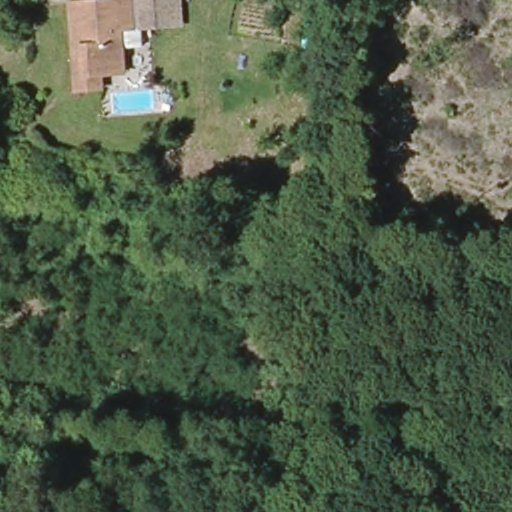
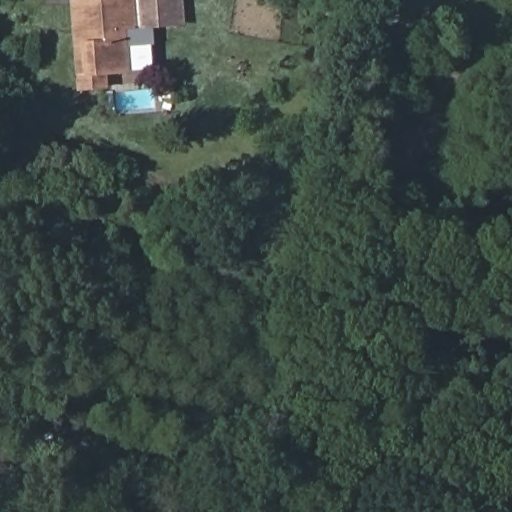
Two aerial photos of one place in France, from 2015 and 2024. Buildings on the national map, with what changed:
unchanged [(70,51),(65,6),(110,0),(171,0),(174,23),(137,27),(139,45),(120,48),(123,71),(96,74),(97,86),(75,90),(70,51)]
unchanged [(17,418),(17,443),(0,443),(0,418),(17,418)]

